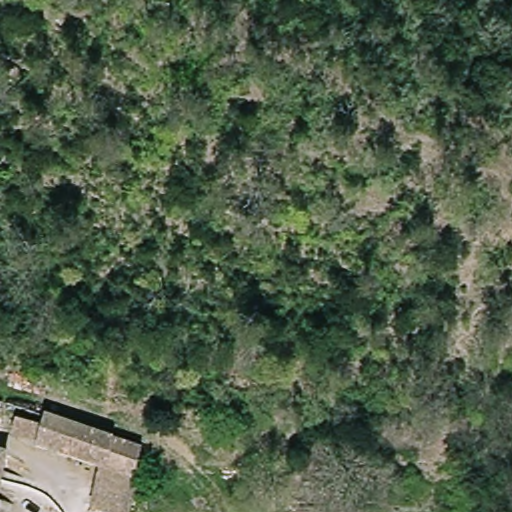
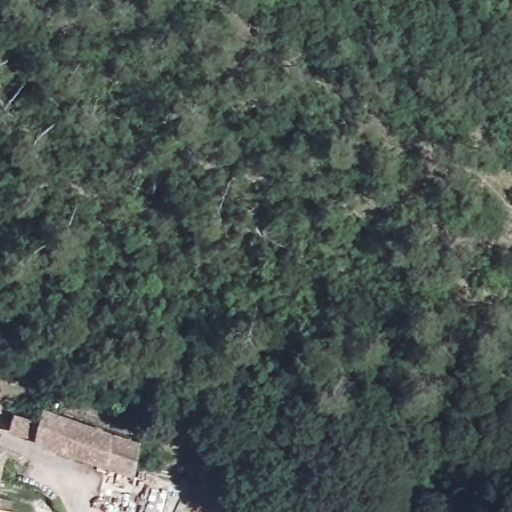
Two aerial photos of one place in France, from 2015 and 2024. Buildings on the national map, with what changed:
unchanged [(37,444),(39,438),(16,431),(22,414),(44,421),(48,410),(146,442),(138,475),(103,464),(37,444)]
unchanged [(0,477),(0,445),(7,447),(0,477)]
unchanged [(123,512),(94,505),(103,464),(138,475),(129,512),(123,512)]

